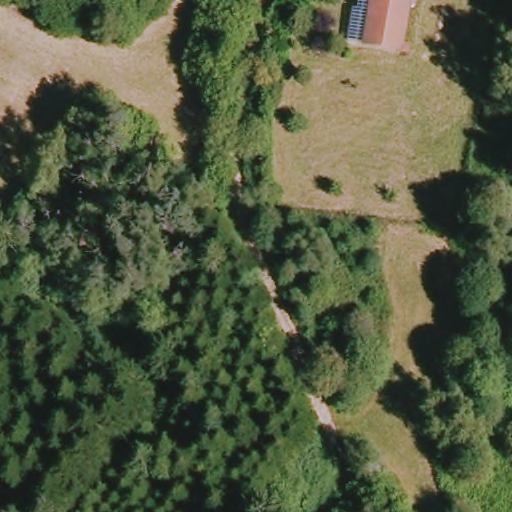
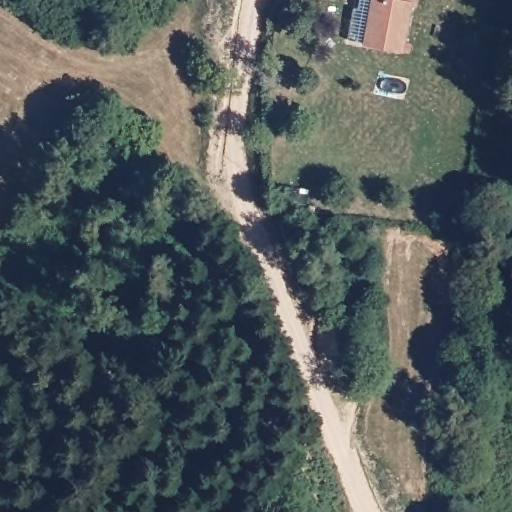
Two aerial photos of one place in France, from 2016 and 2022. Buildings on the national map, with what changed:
unchanged [(414,2),(411,48),(376,44),(356,41),(360,5),(366,6),(366,0),(424,0),(424,2),(414,2)]

